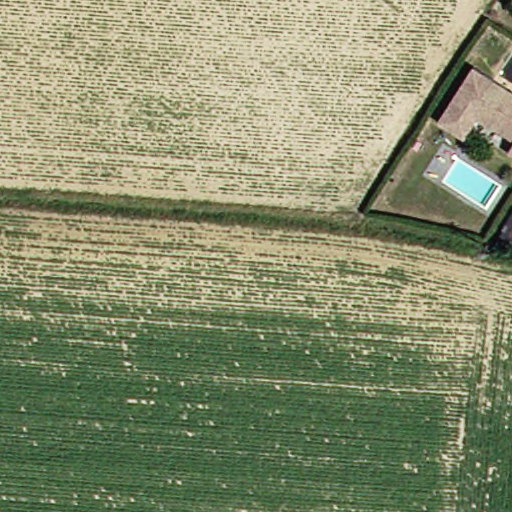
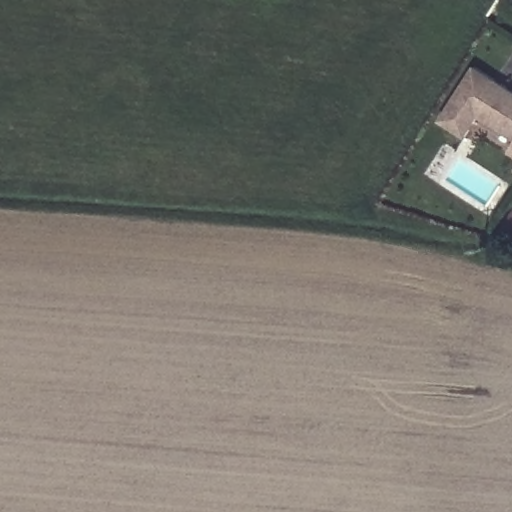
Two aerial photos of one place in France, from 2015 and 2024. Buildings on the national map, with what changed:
unchanged [(479,119),(465,140),(440,124),(475,70),(512,94),(512,140),(479,119)]
unchanged [(510,154),(512,151),(512,156),(510,154)]
unchanged [(504,231),(512,219),(512,237),(504,231)]

